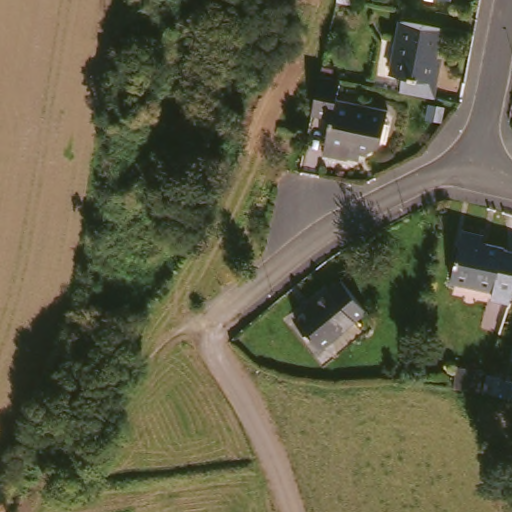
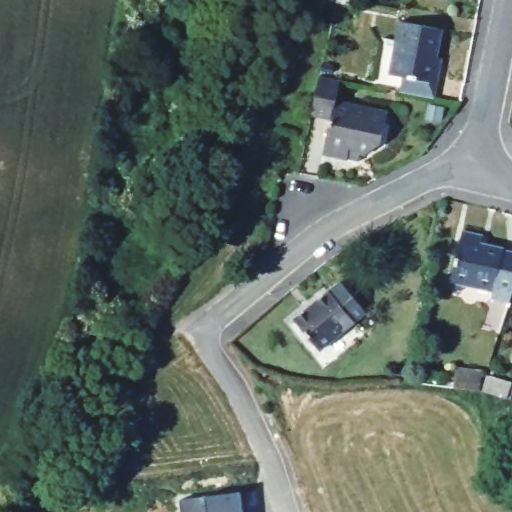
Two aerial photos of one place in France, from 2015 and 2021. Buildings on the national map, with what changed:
unchanged [(451,25),(444,57),(451,59),(443,94),(392,84),(406,18),(451,25)]
unchanged [(342,81),(337,101),(388,112),(382,142),(368,152),(362,150),(359,157),(351,155),(350,159),(326,152),(333,120),(313,115),(322,75),(342,81)]
unchanged [(494,296),(496,291),(453,280),(457,267),(466,229),(486,233),(485,240),(509,246),(508,248),(512,249),(512,302),(494,296)]
unchanged [(332,347),(303,320),(336,286),(354,303),(363,312),(356,320),(332,347)]
unchanged [(460,367),(484,370),(482,392),(457,390),(460,367)]
unchanged [(512,378),(512,395),(490,387),(495,372),(512,378)]
new [(242,512),(181,512),(180,497),(240,490),(242,512)]

